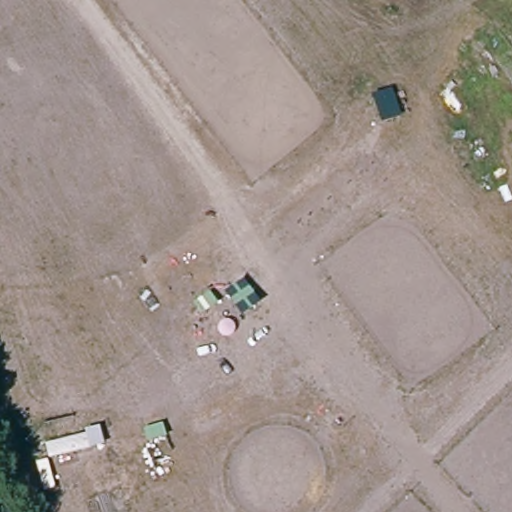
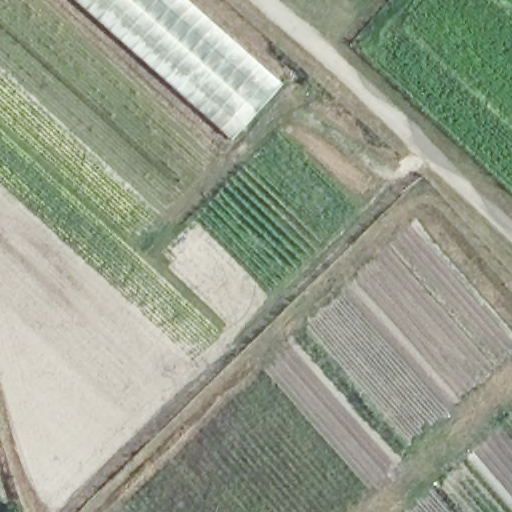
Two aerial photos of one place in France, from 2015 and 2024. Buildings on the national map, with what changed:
new [(233,141),(74,0),(187,0),(283,85),(233,141)]

